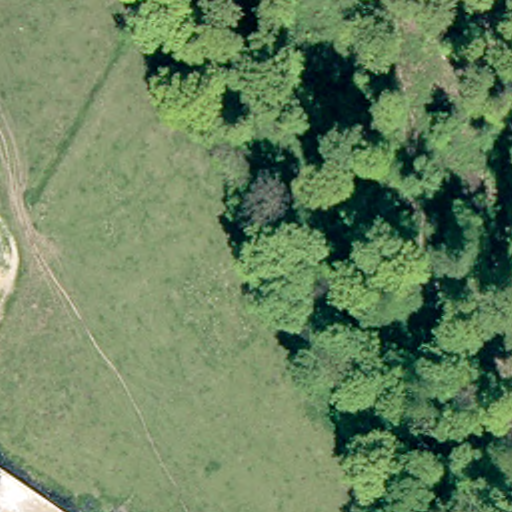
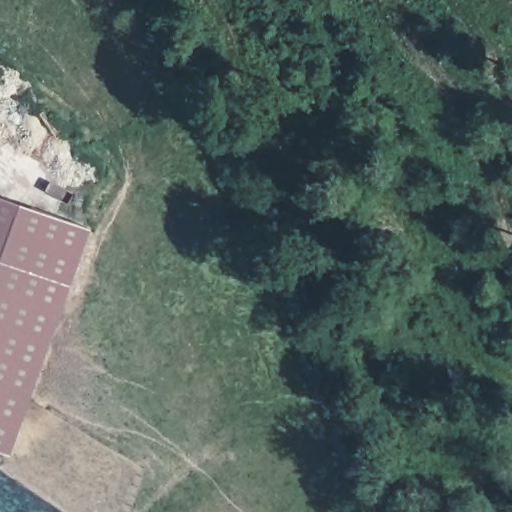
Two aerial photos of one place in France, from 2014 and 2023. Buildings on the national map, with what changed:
new [(9,454),(0,451),(0,198),(87,228),(9,454)]

